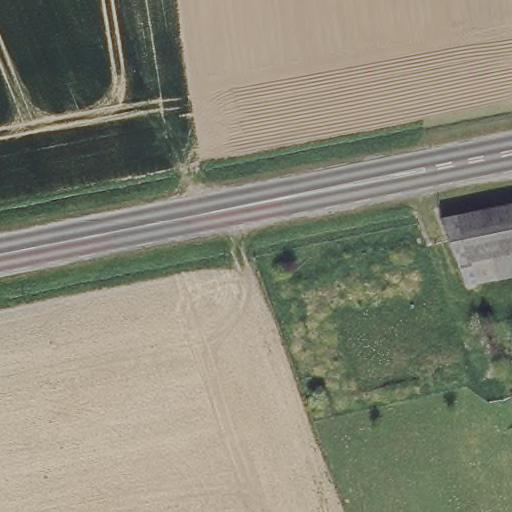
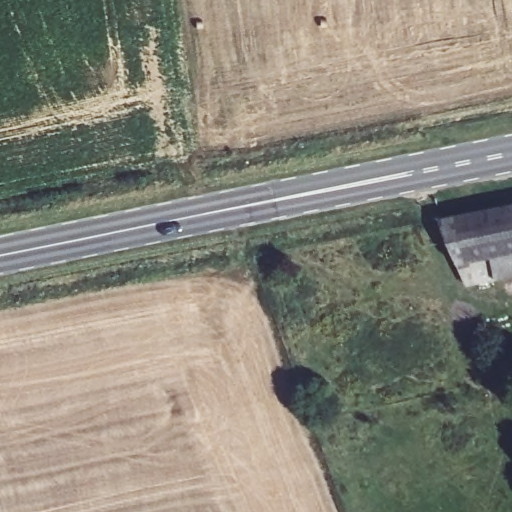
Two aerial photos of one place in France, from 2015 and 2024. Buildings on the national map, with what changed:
unchanged [(471,284),(470,283),(441,214),(512,200),(512,276),(471,284)]

